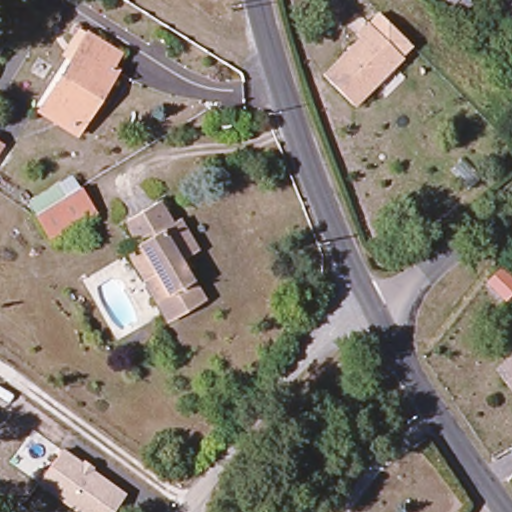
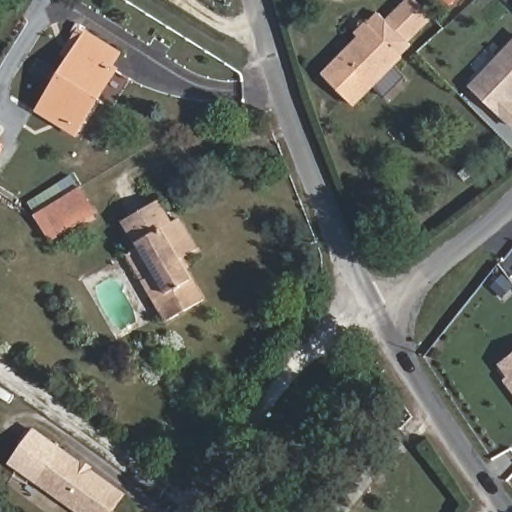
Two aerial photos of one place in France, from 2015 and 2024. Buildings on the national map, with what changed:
unchanged [(354,35),(365,24),(400,57),(352,106),(322,77),(341,57),(350,48),(358,40),(354,35)]
unchanged [(37,109),(73,52),(82,38),(113,59),(105,72),(113,77),(96,103),(76,135),(37,109)]
new [(512,122),(475,85),(512,48),(512,122)]
unchanged [(92,217),(45,244),(29,219),(76,191),(92,217)]
unchanged [(137,246),(123,221),(155,203),(168,227),(175,224),(193,256),(179,265),(202,305),(165,326),(142,283),(125,252),(137,246)]
unchanged [(511,381),(501,368),(512,360),(512,392),(506,385),(511,381)]
new [(41,483),(39,487),(8,464),(32,428),(63,449),(41,483)]
unchanged [(110,512),(80,512),(41,483),(63,449),(124,493),(110,512)]

